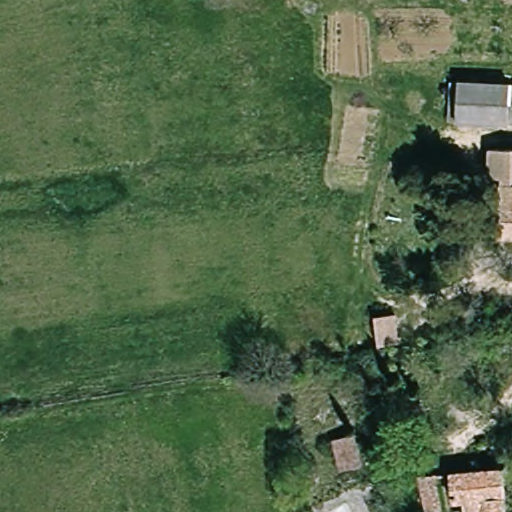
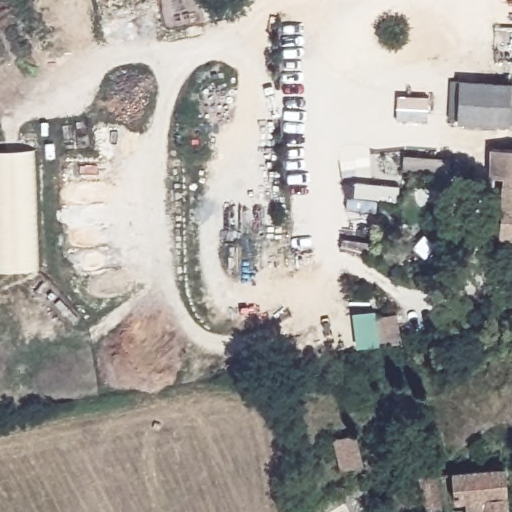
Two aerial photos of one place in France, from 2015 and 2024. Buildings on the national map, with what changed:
unchanged [(509,79),(510,115),(460,119),(459,82),(509,79)]
new [(31,150),(35,270),(0,273),(0,151),(31,150)]
unchanged [(500,150),(512,152),(512,181),(495,179),(500,150)]
new [(353,197),(355,182),(399,187),(397,202),(375,199),(353,197)]
unchanged [(512,189),(512,236),(503,235),(509,189),(512,189)]
unchanged [(402,341),(380,346),(375,316),(397,313),(402,341)]
unchanged [(360,433),(365,465),(343,468),(339,436),(360,433)]
unchanged [(505,512),(471,512),(470,512),(455,512),(451,473),(500,467),(505,512)]
unchanged [(422,471),(438,470),(442,509),(427,512),(422,471)]

